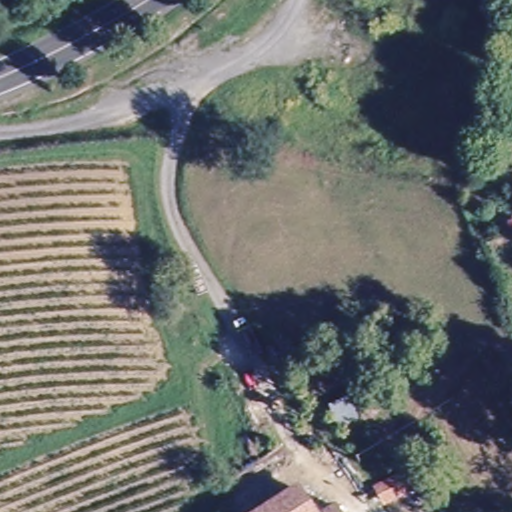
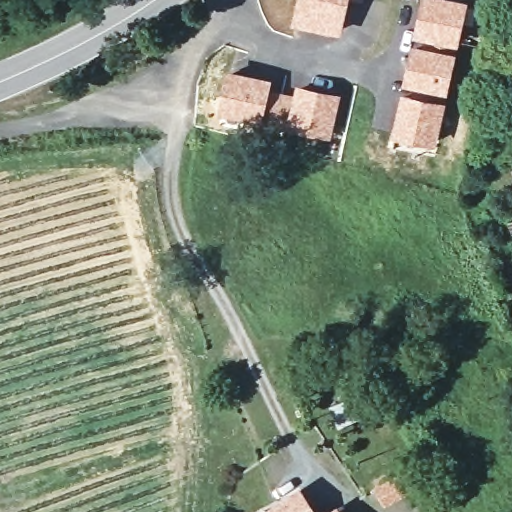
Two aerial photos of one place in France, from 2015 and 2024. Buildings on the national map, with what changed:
new [(297,0),(350,0),(342,36),(292,24),(297,0)]
new [(362,1),(361,0),(363,0),(362,1)]
new [(421,0),(464,0),(470,1),(448,98),(419,91),(402,86),(421,0)]
new [(227,68),(273,78),(271,88),(264,125),(216,114),(227,68)]
new [(271,88),(293,93),(296,83),(342,93),(332,138),(264,125),(271,88)]
new [(402,91),(418,95),(419,91),(448,98),(437,146),(391,135),(402,91)]
unchanged [(302,489),(316,512),(266,512),(297,493),(302,489)]
unchanged [(339,512),(326,512),(336,506),(339,512)]

